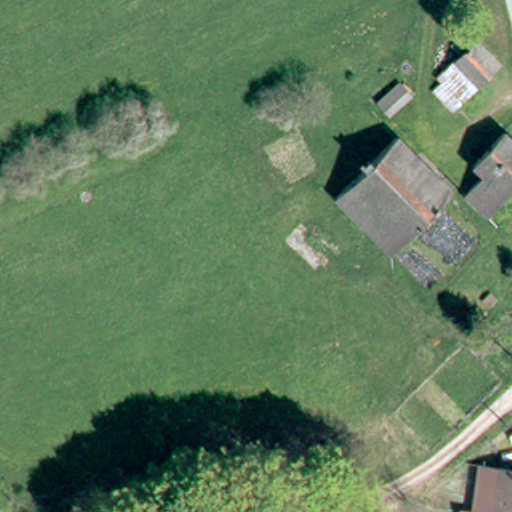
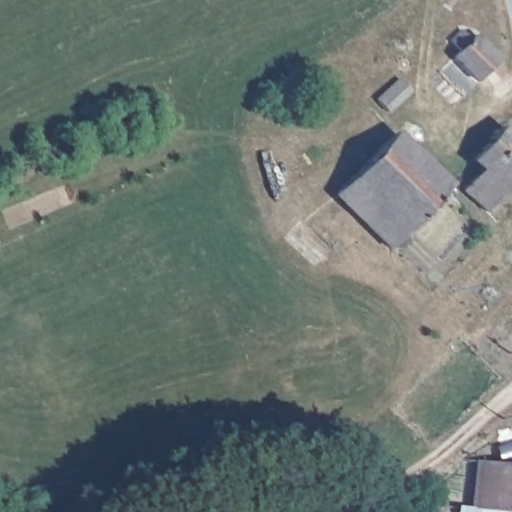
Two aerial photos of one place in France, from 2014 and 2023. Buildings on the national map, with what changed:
unchanged [(460,47),(452,40),(465,28),(473,35),(479,30),(502,54),(479,77),(455,52),(460,47)]
unchanged [(388,103),(380,92),(404,76),(412,85),(388,103)]
unchanged [(483,162),(476,152),(506,124),(512,130),(512,179),(490,200),(467,179),(483,162)]
unchanged [(398,130),(453,179),(395,242),(339,191),(398,130)]
unchanged [(496,474),(512,477),(512,512),(488,512),(496,474)]

